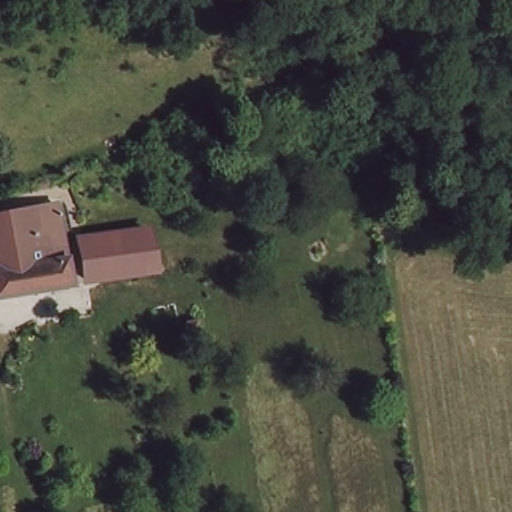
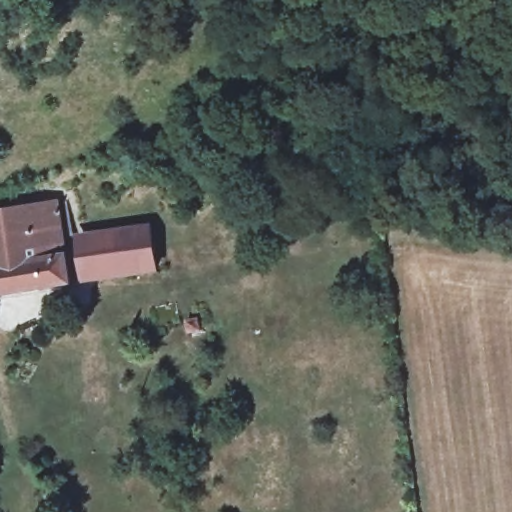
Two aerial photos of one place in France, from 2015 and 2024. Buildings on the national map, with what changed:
unchanged [(63,196),(71,250),(60,252),(64,277),(0,286),(0,206),(63,196)]
unchanged [(175,221),(177,238),(141,245),(144,269),(80,278),(74,236),(165,222),(175,221)]

